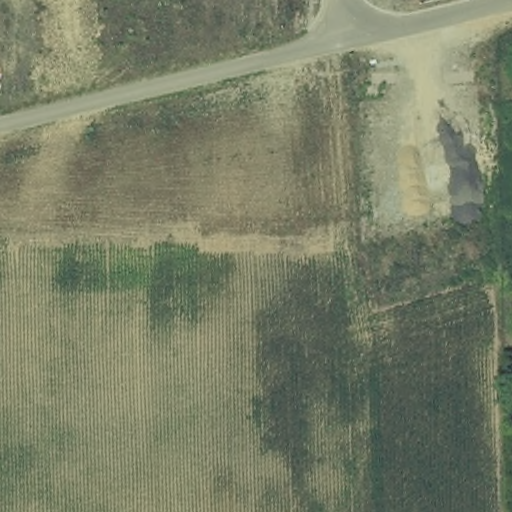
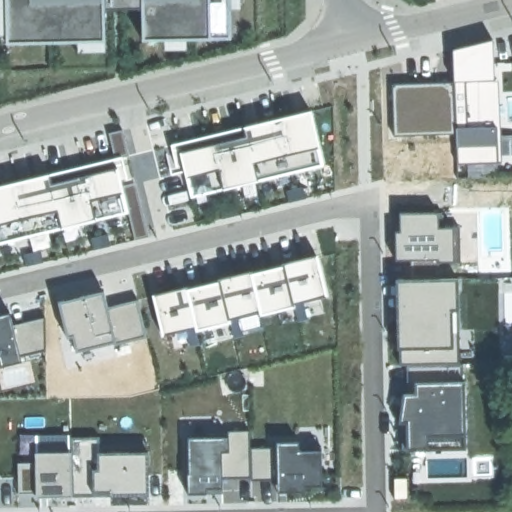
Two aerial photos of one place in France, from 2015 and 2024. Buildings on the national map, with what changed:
new [(232,38),(210,38),(144,40),(144,6),(107,7),(106,52),(75,53),(77,40),(7,41),(5,35),(0,36),(0,0),(241,0),(242,10),(232,10),(232,38)]
new [(493,40),(497,161),(457,164),(453,50),(493,40)]
new [(231,130),(232,132),(267,122),(267,124),(277,122),(277,119),(311,111),(324,165),(191,197),(183,165),(177,166),(172,145),(231,130)]
new [(109,133),(123,130),(129,156),(122,159),(128,185),(136,184),(149,237),(135,240),(128,212),(0,243),(0,186),(115,159),(109,133)]
new [(304,187),(307,198),(290,202),(287,192),(304,187)]
new [(237,204),(240,215),(222,219),(220,208),(237,204)]
new [(428,212),(427,261),(401,261),(400,212),(428,212)]
new [(108,235),(110,246),(93,250),(91,240),(108,235)]
new [(41,251),(43,262),(27,266),(24,256),(41,251)]
new [(187,286),(189,289),(201,286),(218,282),(218,278),(252,271),(253,273),(282,266),(282,263),(317,255),(327,296),(304,302),(307,319),(298,321),(295,307),(261,315),(259,312),(240,317),(243,335),(234,337),(230,322),(197,331),(200,343),(190,346),(186,330),(162,336),(153,295),(187,286)]
new [(407,365),(402,287),(459,285),(462,364),(407,365)]
new [(105,291),(108,307),(138,300),(147,337),(77,352),(73,337),(67,337),(58,302),(105,291)]
new [(13,325),(45,317),(46,351),(21,357),(22,362),(0,367),(0,315),(10,313),(13,325)]
new [(403,394),(407,393),(407,365),(462,364),(465,448),(402,449),(402,424),(399,423),(403,394)]
new [(188,473),(188,438),(208,437),(208,434),(228,433),(228,431),(250,431),(250,448),(277,447),(277,442),(299,442),(299,447),(322,447),(322,487),(305,487),(305,492),(286,492),(277,492),(277,480),(252,481),(252,478),(222,478),(223,488),(222,488),(223,493),(188,495),(187,473),(188,473)]
new [(71,452),(71,441),(147,441),(149,498),(72,497),(71,452)]
new [(35,462),(36,452),(71,452),(72,497),(37,497),(36,493),(19,493),(18,463),(35,462)]
new [(408,477),(408,499),(395,499),(394,478),(408,477)]

